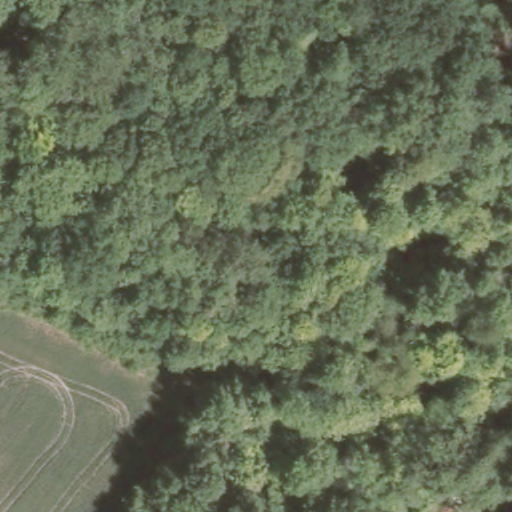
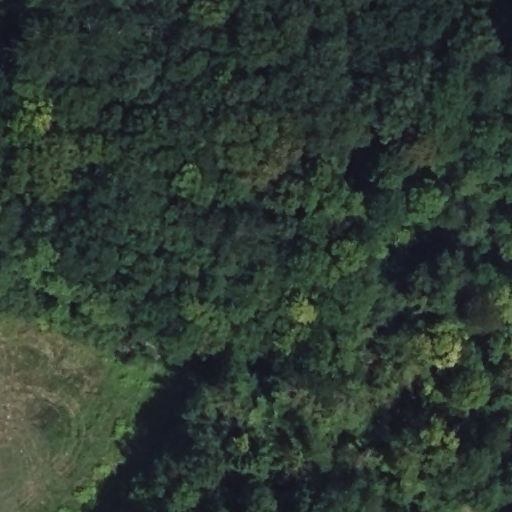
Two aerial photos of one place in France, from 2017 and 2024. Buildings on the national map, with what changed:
unchanged [(352,354),(333,391),(310,379),(330,343),(352,354)]

